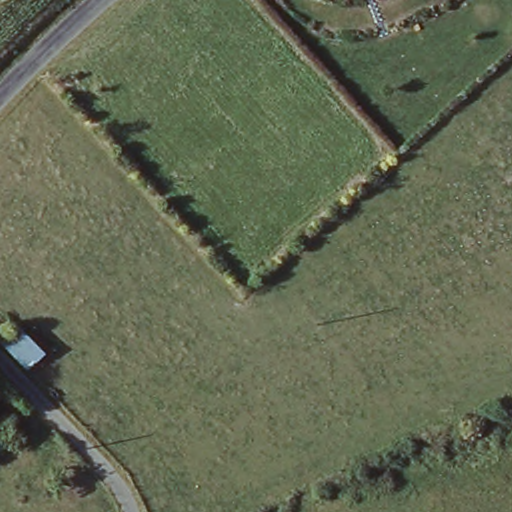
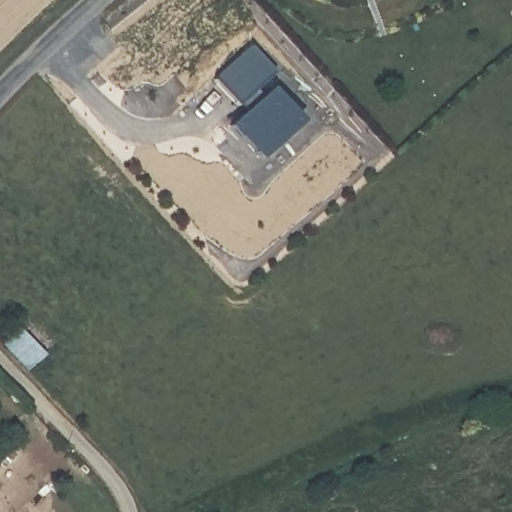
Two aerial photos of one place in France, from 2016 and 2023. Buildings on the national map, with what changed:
new [(256,47),(280,73),(259,92),(265,99),(276,90),(302,120),(260,157),(234,127),(254,109),(248,101),(242,107),(218,80),(256,47)]
unchanged [(25,370),(0,346),(0,338),(15,325),(45,355),(25,370)]

